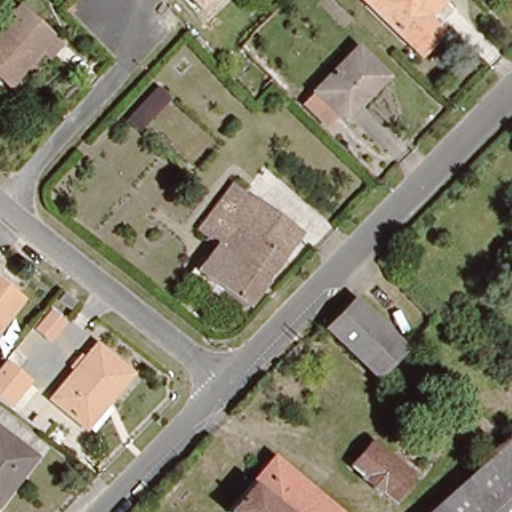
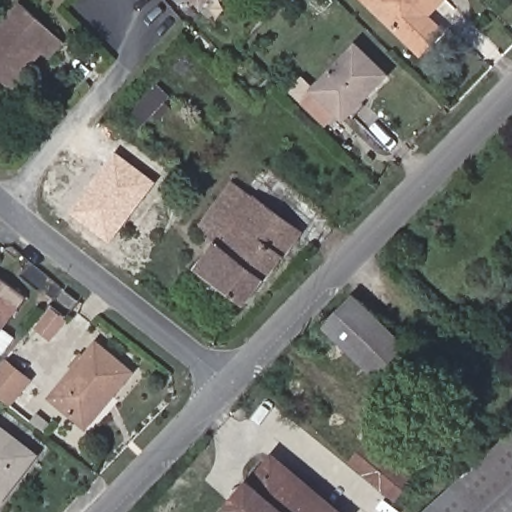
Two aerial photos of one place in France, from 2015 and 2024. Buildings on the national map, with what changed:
unchanged [(205,8),(196,0),(212,0),(205,8)]
unchanged [(425,30),(413,44),(370,1),(371,0),(439,0),(425,15),(431,23),(425,30)]
unchanged [(9,82),(0,75),(0,22),(17,2),(59,41),(44,57),(36,50),(23,65),(28,69),(13,86),(9,82)]
unchanged [(380,80),(341,121),(310,91),(350,50),(380,80)]
unchanged [(162,108),(134,141),(122,131),(151,98),(162,108)]
new [(70,213),(117,152),(157,182),(110,244),(70,213)]
unchanged [(195,270),(216,242),(205,234),(200,229),(230,187),(231,185),(300,236),(292,246),(246,310),(195,270)]
unchanged [(0,332),(0,278),(26,297),(0,332)]
unchanged [(420,345),(373,391),(305,329),(350,280),(420,345)]
unchanged [(60,307),(67,298),(79,308),(72,316),(60,307)]
unchanged [(132,377),(112,401),(106,396),(81,424),(51,396),(96,345),(132,377)]
unchanged [(0,403),(0,371),(7,363),(29,383),(7,408),(0,403)]
unchanged [(1,502),(0,501),(0,433),(33,458),(1,502)]
unchanged [(511,441),(512,442),(512,512),(425,512),(506,444),(511,441)]
unchanged [(402,468),(411,457),(422,468),(389,502),(350,466),(372,443),(402,468)]
unchanged [(327,512),(239,512),(230,503),(274,459),(327,512)]

